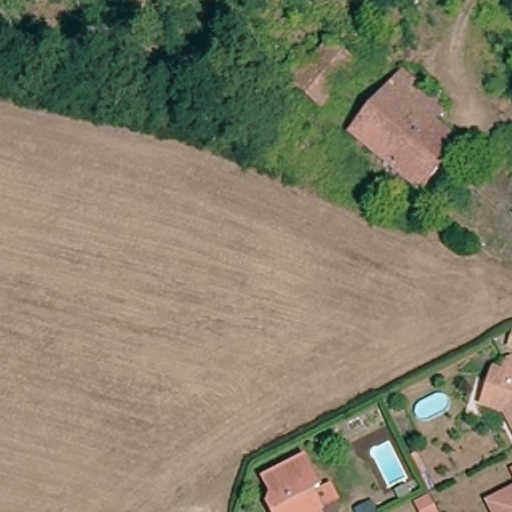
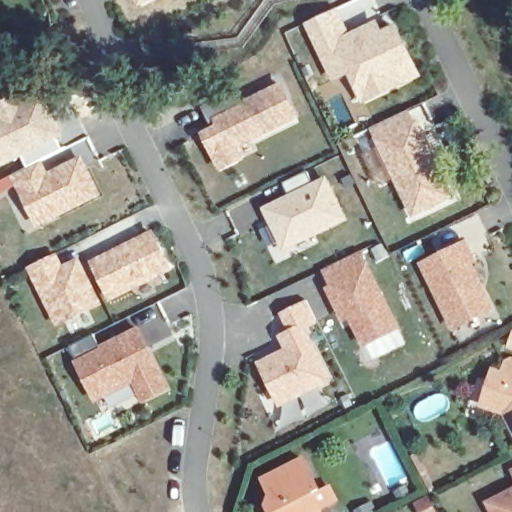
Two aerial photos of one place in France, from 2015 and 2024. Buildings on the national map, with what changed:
new [(138,7),(134,0),(153,0),(138,7)]
demolished [(365,8),(357,2),(359,0),(372,0),(365,8)]
new [(350,34),(377,19),(382,30),(397,22),(422,76),(363,105),(349,75),(333,84),(302,24),(338,7),(350,34)]
demolished [(352,72),(317,112),(290,89),(325,48),(352,72)]
demolished [(444,114),(433,127),(460,149),(421,195),(353,138),(404,79),(444,114)]
new [(240,102),(282,81),(301,118),(240,148),(245,161),(219,172),(200,134),(213,126),(204,110),(237,92),(240,102)]
new [(10,176),(29,166),(23,157),(0,168),(0,102),(20,92),(22,97),(42,88),(63,137),(59,140),(64,150),(44,161),(49,171),(83,155),(102,196),(38,226),(10,176)]
new [(415,125),(419,123),(451,195),(413,213),(373,127),(408,112),(415,125)]
new [(313,183),(326,176),(348,220),(284,252),(261,208),(289,195),(284,184),(308,172),(313,183)]
new [(174,271),(109,303),(89,262),(152,230),(174,271)]
new [(480,261),(474,264),(496,311),(453,332),(419,264),(467,239),(480,261)]
new [(400,330),(363,349),(349,319),(342,323),(325,290),(330,287),(322,271),(362,251),(400,330)]
new [(64,264),(80,256),(101,306),(57,328),(26,268),(58,253),(64,264)]
new [(257,363),(285,350),(278,336),(289,331),(280,313),(307,299),(319,323),(308,329),(334,380),(279,408),(257,363)]
new [(101,345),(140,325),(172,388),(144,404),(132,382),(96,402),(70,347),(95,335),(101,345)]
unchanged [(474,415),(486,380),(495,383),(499,372),(503,369),(512,372),(512,451),(498,423),(474,415)]
unchanged [(265,497),(258,483),(298,462),(314,492),(323,487),(330,501),(314,509),(315,512),(264,512),(262,507),(265,497)]
unchanged [(394,493),(405,487),(409,495),(398,501),(394,493)]
unchanged [(512,512),(491,512),(512,501),(512,512)]

